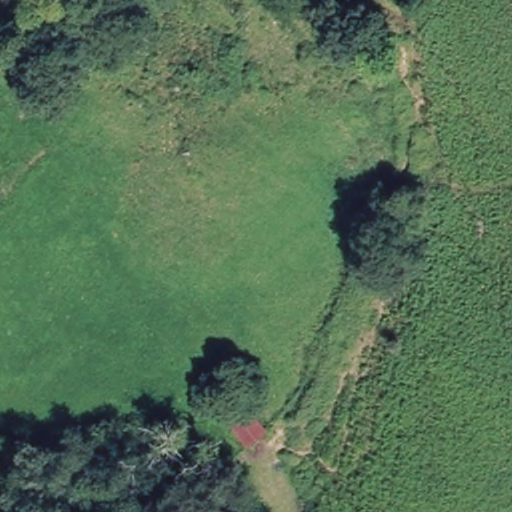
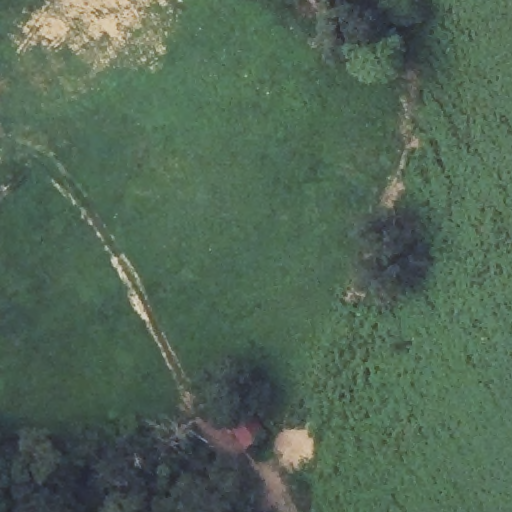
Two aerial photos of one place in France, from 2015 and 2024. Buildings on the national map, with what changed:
unchanged [(220,416),(241,402),(268,442),(247,457),(220,416)]

